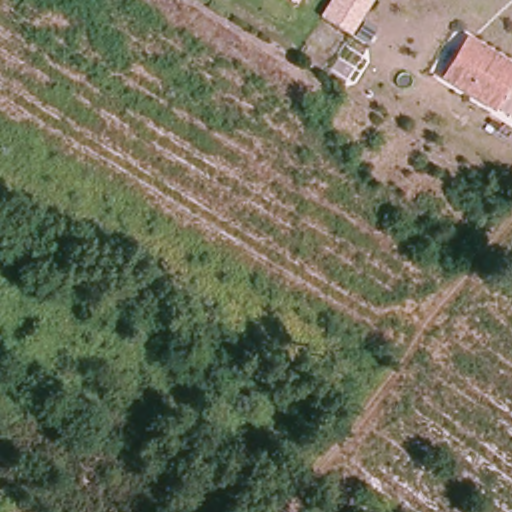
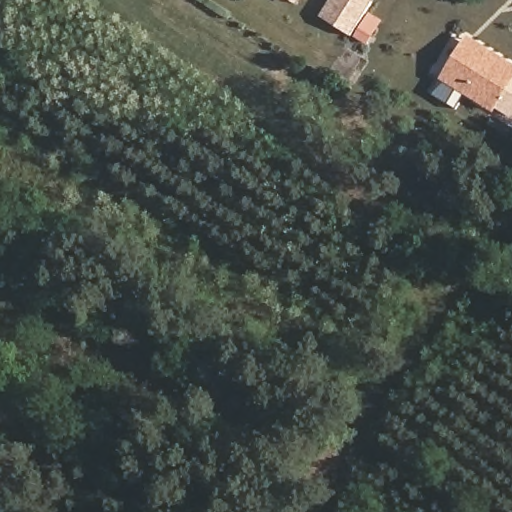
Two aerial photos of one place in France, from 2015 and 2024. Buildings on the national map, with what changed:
unchanged [(325,0),(364,0),(342,36),(314,17),(325,0)]
unchanged [(484,112),(433,77),(449,54),(460,38),(471,46),(509,74),(484,112)]

